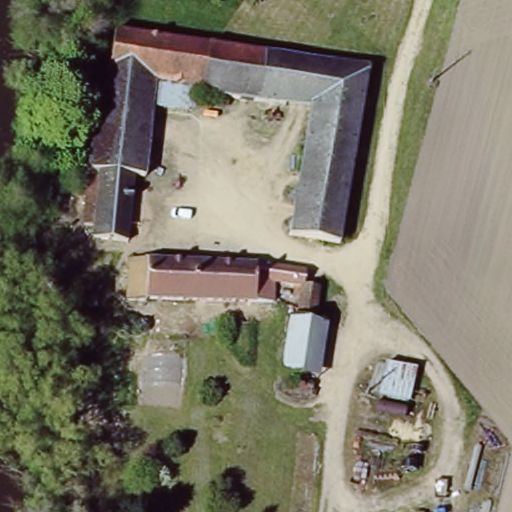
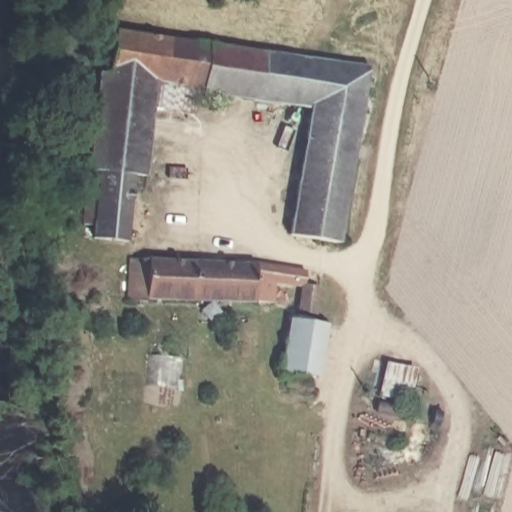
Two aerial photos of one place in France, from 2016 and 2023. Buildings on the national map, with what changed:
unchanged [(293,56),(283,106),(153,81),(146,176),(134,179),(129,246),(99,244),(100,226),(91,225),(107,23),(293,56)]
unchanged [(299,57),(321,61),(314,111),(283,106),(293,56),(299,57)]
unchanged [(366,69),(340,245),(294,238),(314,111),(321,61),(366,69)]
unchanged [(136,248),(302,255),(300,271),(296,303),(133,293),(136,248)]
unchanged [(323,286),(316,320),(331,323),(323,377),(283,373),(301,285),(323,286)]
unchanged [(417,368),(410,399),(380,396),(387,363),(417,368)]

